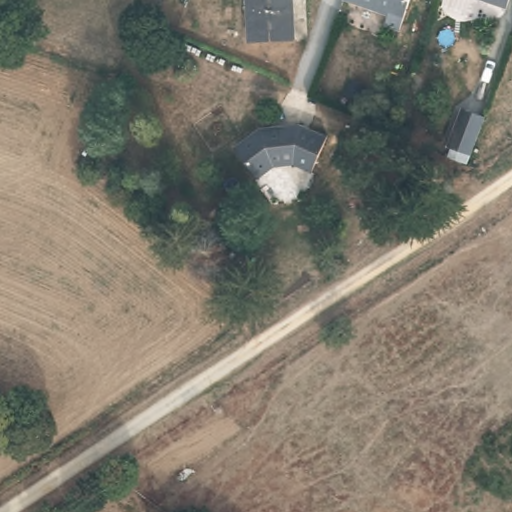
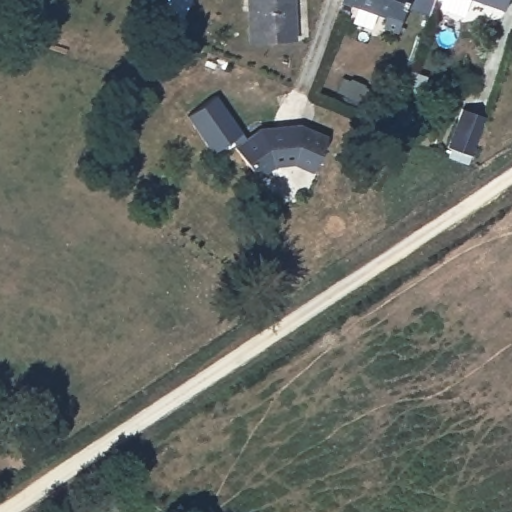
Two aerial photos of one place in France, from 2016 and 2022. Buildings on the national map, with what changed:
unchanged [(295,37),(251,39),(250,0),(293,0),(295,37)]
unchanged [(398,24),(383,18),(387,8),(364,0),(407,0),(398,24)]
unchanged [(512,2),(510,7),(488,0),(512,0),(512,2)]
new [(188,115),(218,95),(242,130),(245,135),(238,141),(233,143),(232,138),(213,152),(188,115)]
unchanged [(297,158),(278,159),(262,172),(238,141),(263,122),(303,118),(331,130),(316,165),(297,158)]

